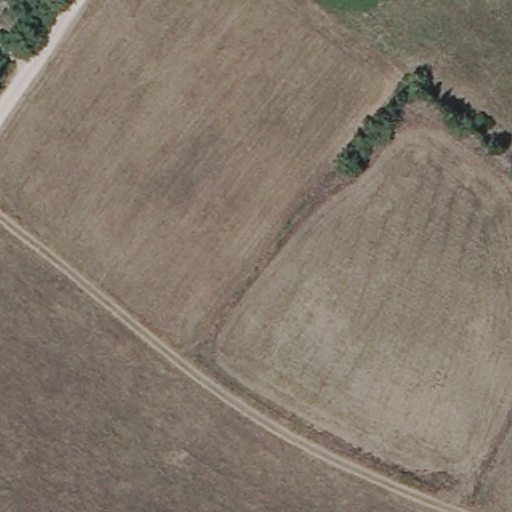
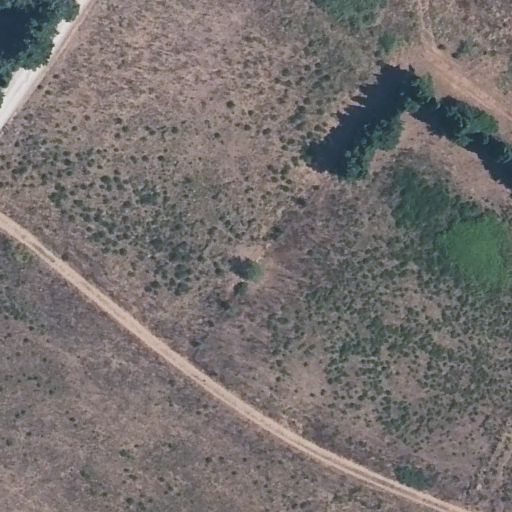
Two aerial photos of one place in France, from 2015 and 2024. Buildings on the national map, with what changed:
unchanged [(15,31),(19,23),(26,26),(22,35),(15,31)]

